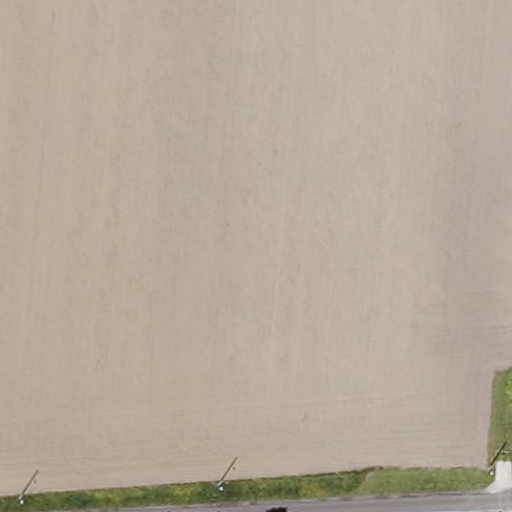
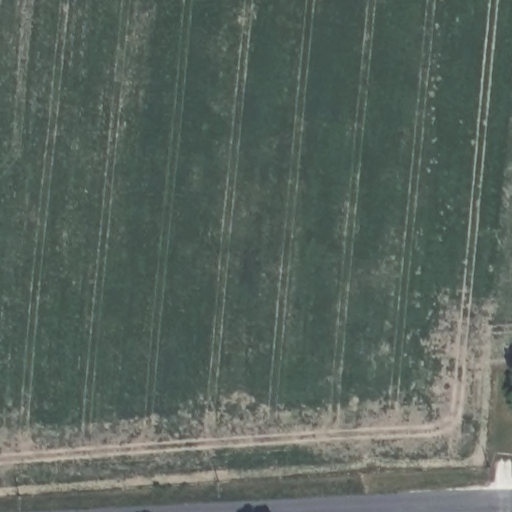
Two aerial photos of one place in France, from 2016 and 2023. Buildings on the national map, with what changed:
[]

